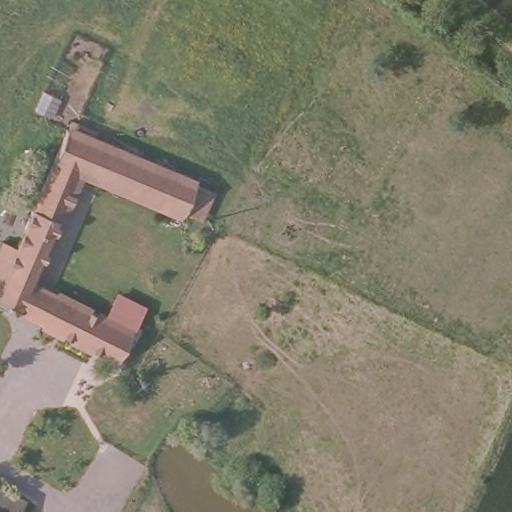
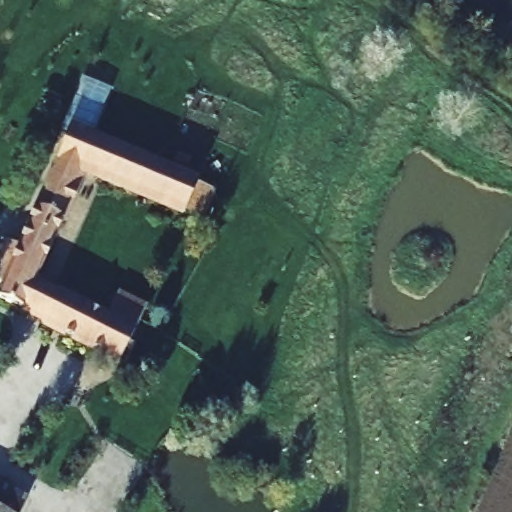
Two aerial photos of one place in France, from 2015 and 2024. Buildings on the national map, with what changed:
unchanged [(124,356),(28,302),(2,291),(7,277),(0,274),(0,253),(3,247),(9,233),(23,240),(72,125),(201,176),(194,193),(188,207),(87,167),(40,275),(139,326),(124,356)]

